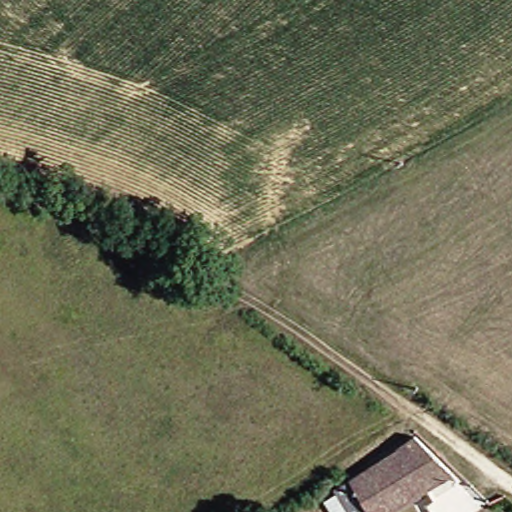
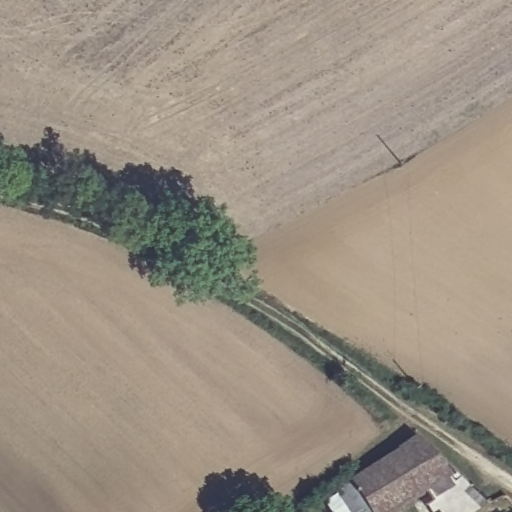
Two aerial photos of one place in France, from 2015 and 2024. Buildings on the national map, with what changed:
unchanged [(407,436),(438,483),(394,512),(337,512),(335,510),(322,491),(341,480),(407,436)]

